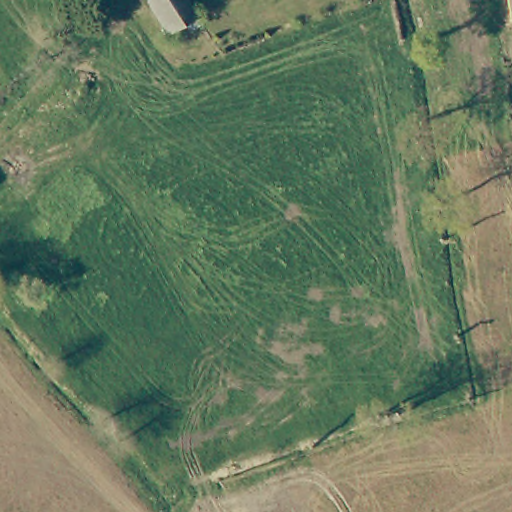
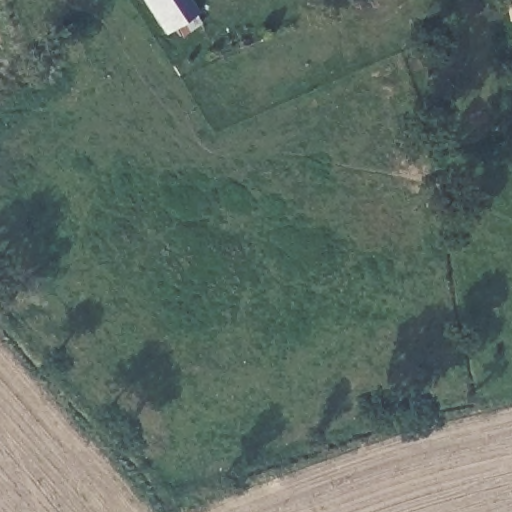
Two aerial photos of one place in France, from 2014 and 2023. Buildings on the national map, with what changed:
unchanged [(167,29),(148,0),(189,0),(195,10),(167,29)]
unchanged [(505,0),(512,0),(512,11),(505,11),(505,0)]

